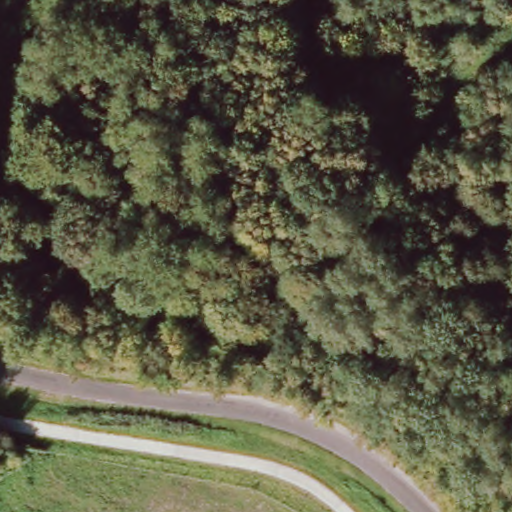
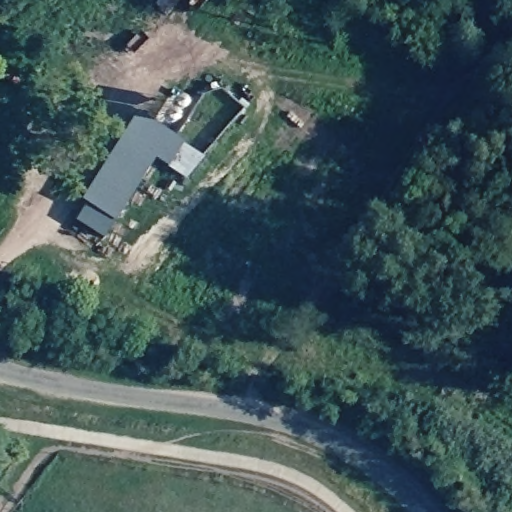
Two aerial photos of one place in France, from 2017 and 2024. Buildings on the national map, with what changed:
new [(101,237),(73,219),(83,204),(79,201),(135,112),(201,154),(186,179),(151,157),(101,237)]

